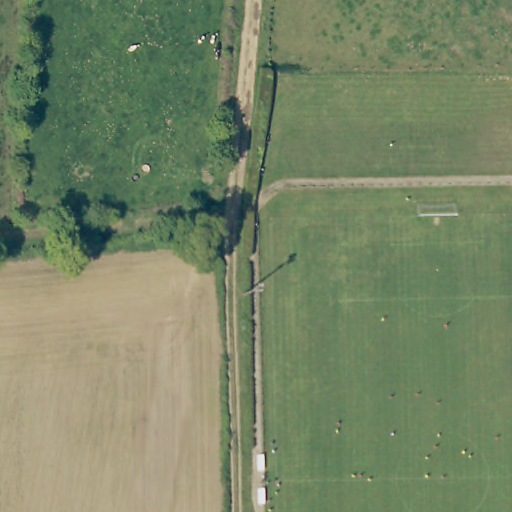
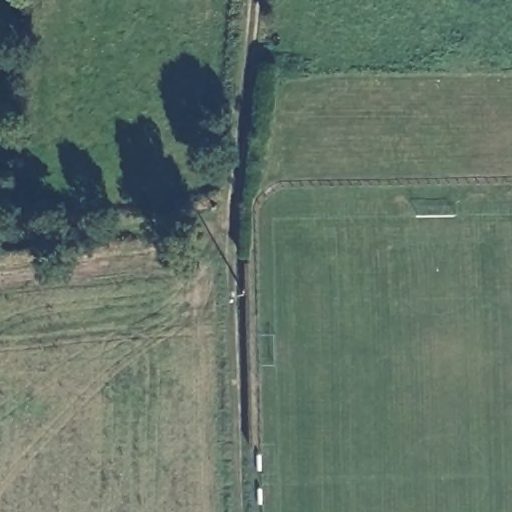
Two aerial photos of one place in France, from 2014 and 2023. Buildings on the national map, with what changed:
[]

